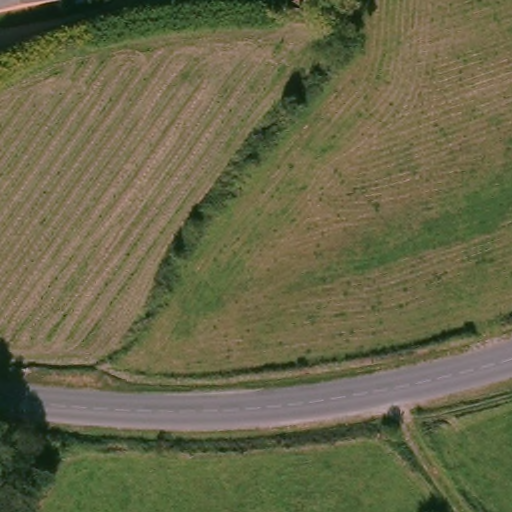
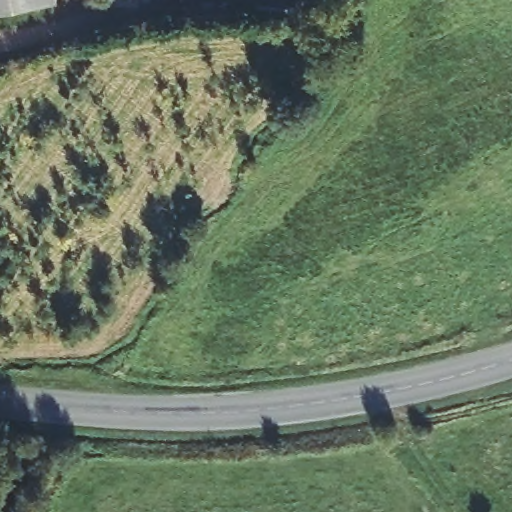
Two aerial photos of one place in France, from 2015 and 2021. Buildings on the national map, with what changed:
unchanged [(51,0),(0,10),(0,0),(51,0)]

